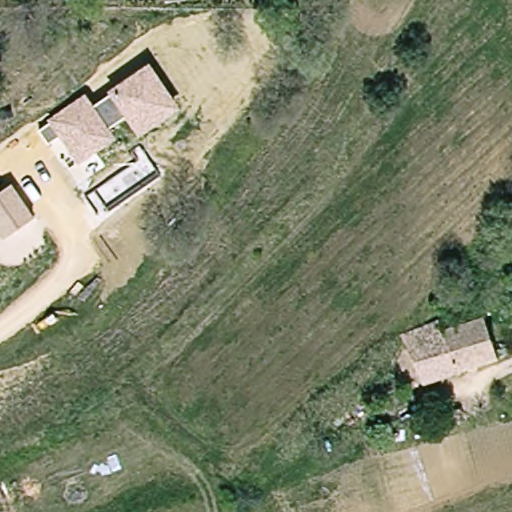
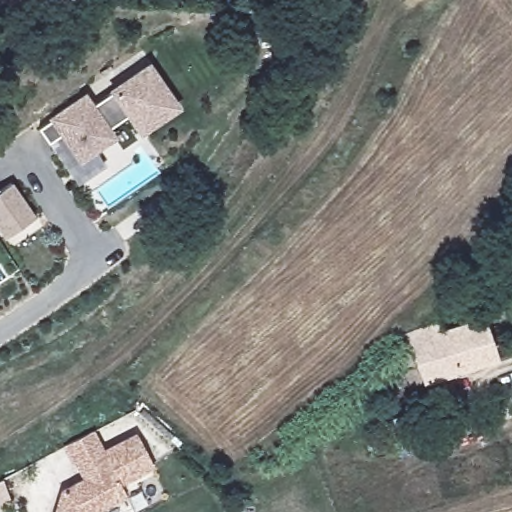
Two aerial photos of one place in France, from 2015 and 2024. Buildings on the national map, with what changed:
unchanged [(109,128),(117,138),(79,163),(58,136),(48,141),(40,131),(49,121),(46,120),(86,94),(94,104),(111,92),(151,64),(181,108),(139,135),(126,117),(109,128)]
new [(36,216),(4,239),(0,233),(0,192),(13,183),(36,216)]
unchanged [(504,354),(434,382),(433,377),(418,382),(407,353),(419,347),(415,331),(448,317),(453,330),(492,316),(504,354)]
new [(55,494),(78,482),(69,465),(66,466),(58,449),(86,434),(97,455),(131,437),(147,470),(113,487),(119,499),(93,512),(50,512),(55,494)]

